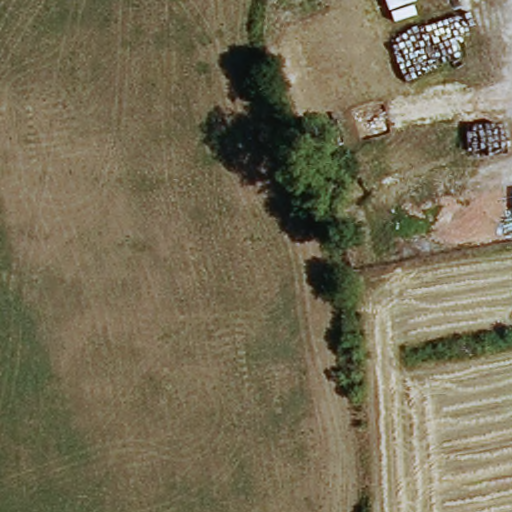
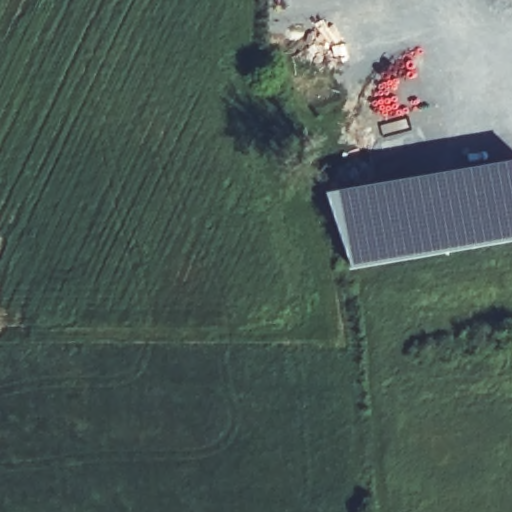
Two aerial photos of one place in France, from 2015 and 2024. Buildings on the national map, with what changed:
new [(330,192),(512,160),(512,241),(355,268),(330,192)]

